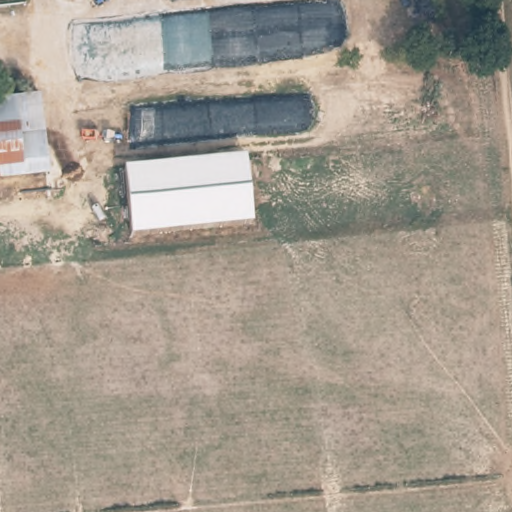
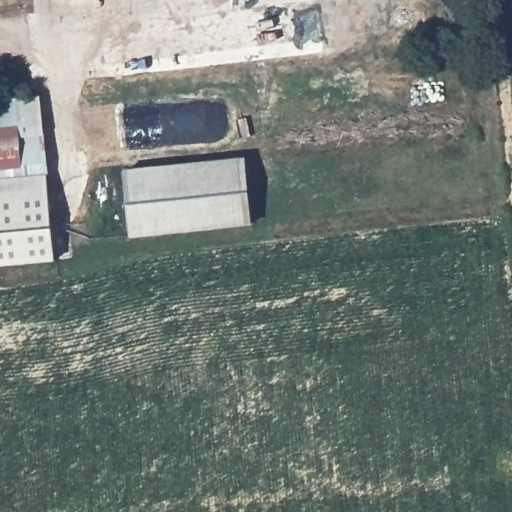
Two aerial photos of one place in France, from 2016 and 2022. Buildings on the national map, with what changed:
unchanged [(49,178),(0,183),(0,99),(39,96),(49,178)]
unchanged [(245,156),(252,228),(130,238),(124,170),(245,156)]
new [(0,183),(46,179),(54,260),(0,265),(0,183)]

